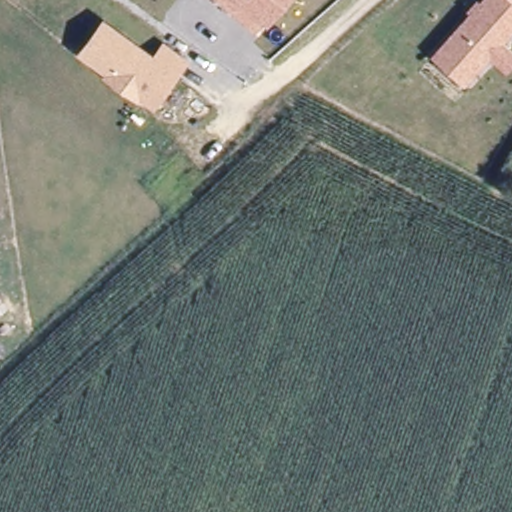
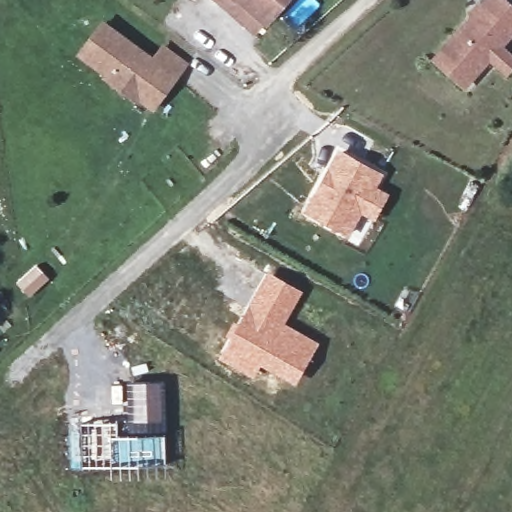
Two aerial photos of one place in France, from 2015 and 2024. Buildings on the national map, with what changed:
unchanged [(222,0),(280,0),(275,6),(278,11),(266,21),(263,20),(256,30),(232,9),(222,0)]
unchanged [(490,59),(464,89),(435,60),(489,0),(501,0),(512,10),(512,34),(498,49),(512,62),(512,68),(507,75),(490,59)]
unchanged [(152,106),(106,74),(106,71),(81,51),(104,20),(156,62),(155,64),(160,69),(161,65),(175,75),(152,106)]
new [(338,148),(386,174),(379,185),(391,194),(374,222),(363,215),(350,239),(302,212),(338,148)]
new [(232,330),(268,270),(304,291),(287,323),(321,343),(296,386),(261,366),(254,378),(218,359),(232,330)]
new [(111,479),(111,467),(81,469),(81,423),(118,421),(119,436),(128,435),(126,381),(166,379),(166,434),(166,477),(111,479)]

